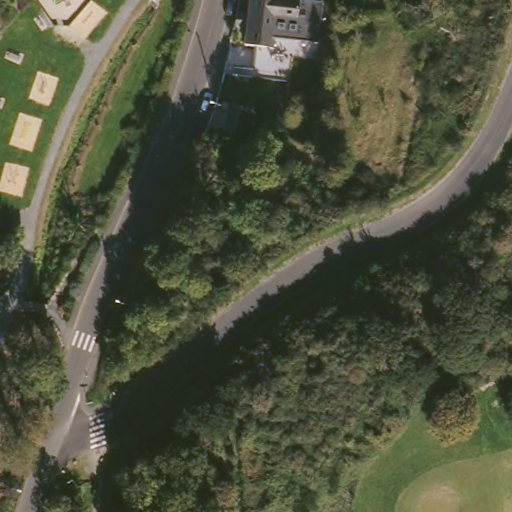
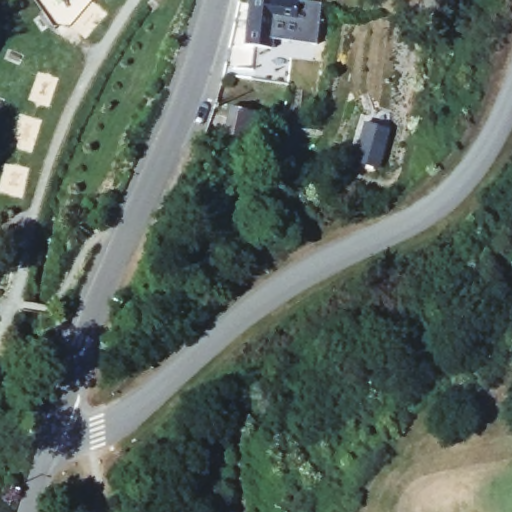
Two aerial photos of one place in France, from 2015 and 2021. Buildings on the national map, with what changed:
unchanged [(288,16),(280,15),(278,27),(287,27),(283,45),(255,41),(244,39),(251,0),(291,0),(288,16)]
unchanged [(295,26),(287,78),(250,72),(254,47),(255,41),(283,45),(287,27),(287,25),(295,26)]
unchanged [(270,115),(257,144),(221,130),(234,101),(270,115)]
new [(355,162),(364,122),(388,128),(380,167),(355,162)]

